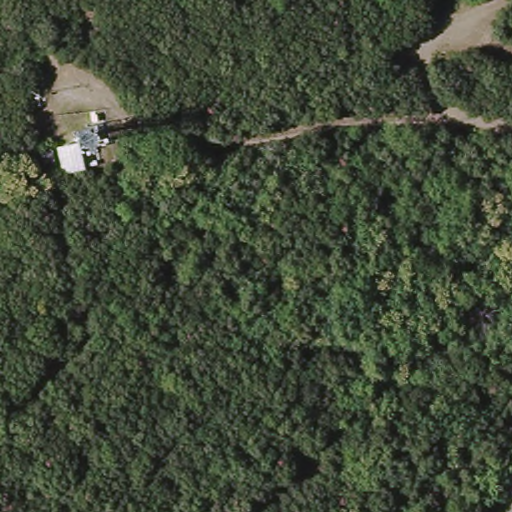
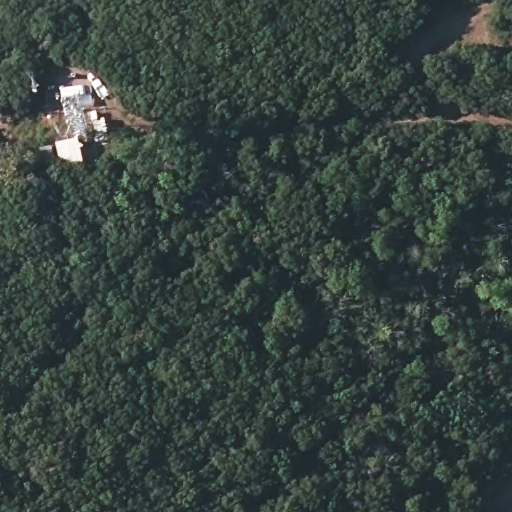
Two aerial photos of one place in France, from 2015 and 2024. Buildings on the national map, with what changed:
unchanged [(58,164),(55,152),(54,142),(77,137),(75,130),(94,126),(98,149),(85,151),(86,155),(88,170),(79,171),(64,174),(59,175),(58,164)]

